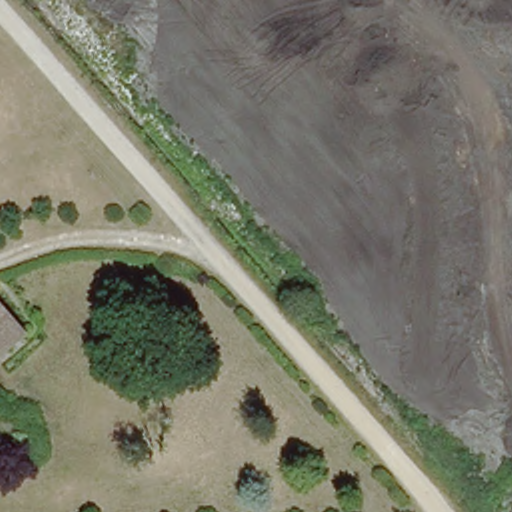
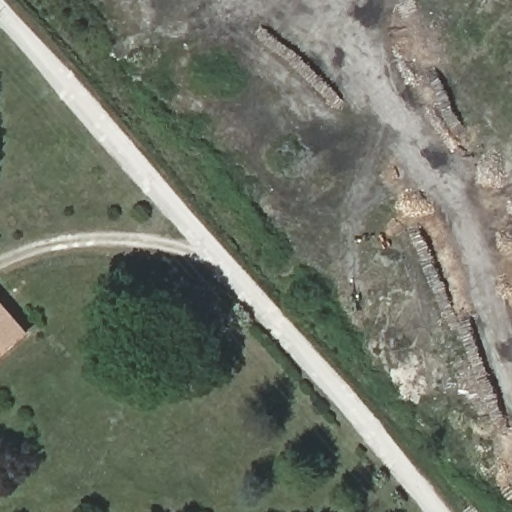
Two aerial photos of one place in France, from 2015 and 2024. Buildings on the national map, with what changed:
unchanged [(14,349),(0,361),(0,300),(30,335),(14,349)]

